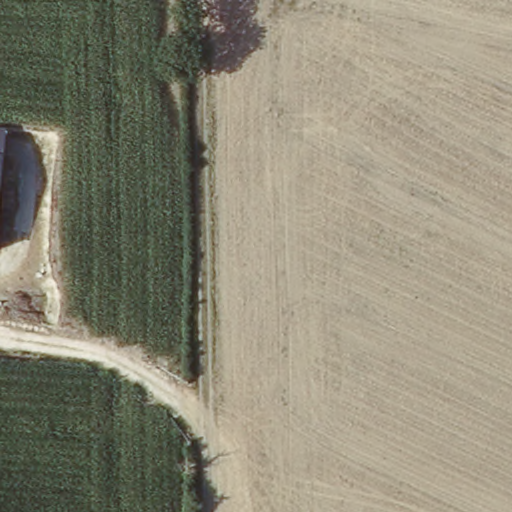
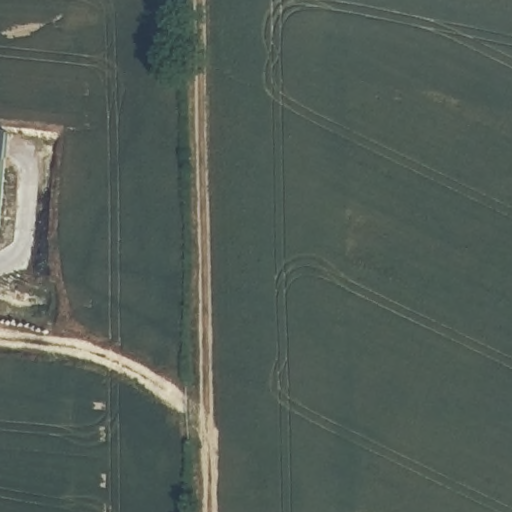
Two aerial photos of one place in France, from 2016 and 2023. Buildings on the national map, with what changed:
unchanged [(0,219),(0,126),(8,127),(0,219)]

